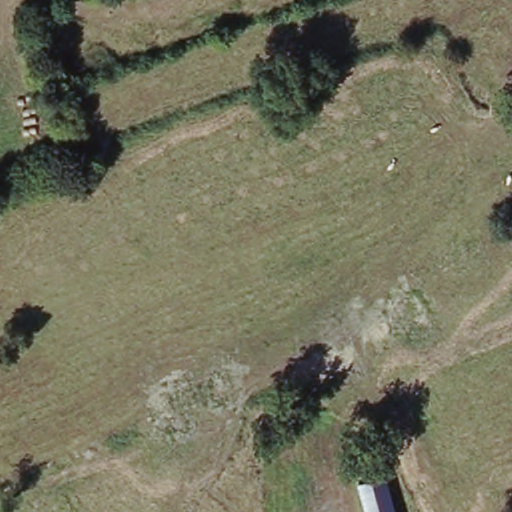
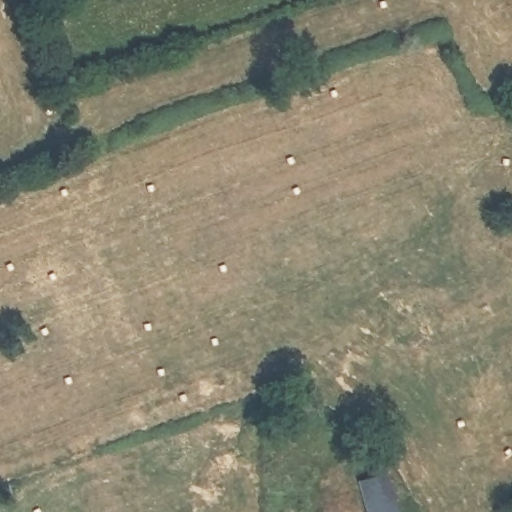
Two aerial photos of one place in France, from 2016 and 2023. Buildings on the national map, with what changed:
unchanged [(391,512),(365,512),(360,492),(384,485),(391,512)]

